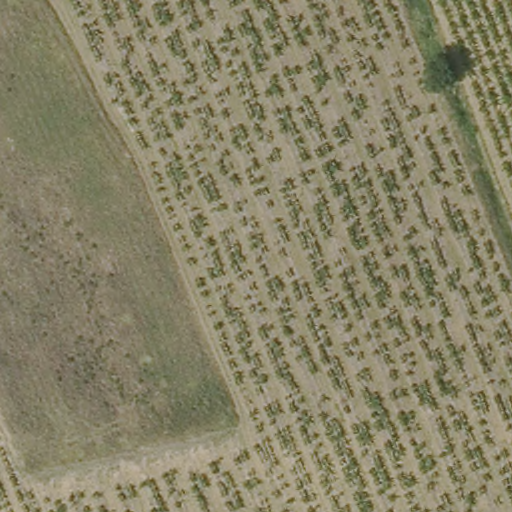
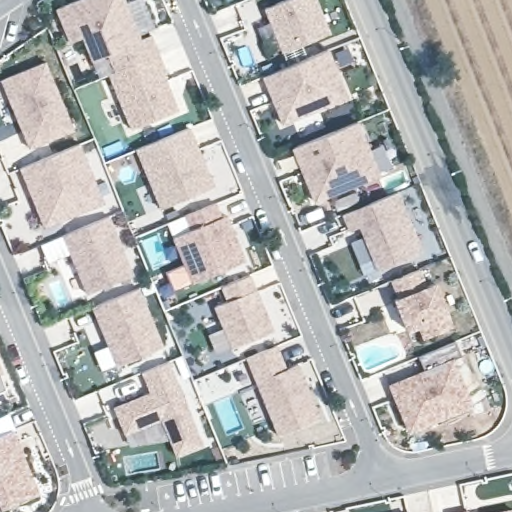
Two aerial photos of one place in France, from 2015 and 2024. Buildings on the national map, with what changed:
new [(125,0),(141,40),(153,35),(166,68),(163,69),(179,110),(131,129),(108,74),(99,77),(91,60),(81,37),(70,41),(56,10),(79,0),(125,0)]
new [(317,0),(330,31),(284,50),(266,6),(281,0),(317,0)]
new [(329,47),(349,95),(284,121),(274,98),(279,96),(276,87),(271,90),(264,74),(329,47)]
new [(3,101),(0,94),(0,81),(39,65),(68,132),(23,151),(16,132),(13,123),(17,121),(8,99),(3,101)]
new [(359,120),(381,173),(316,199),(303,169),(311,166),(309,160),(305,160),(298,144),(359,120)]
new [(203,162),(205,169),(213,190),(161,211),(136,152),(189,130),(203,162)]
new [(38,209),(29,189),(20,165),(35,159),(79,140),(103,198),(59,216),(43,222),(38,209)]
new [(397,191),(422,252),(376,272),(356,228),(349,231),(343,214),(397,191)]
new [(173,237),(191,231),(184,215),(217,204),(223,218),(227,215),(245,262),(191,285),(173,237)]
new [(63,234),(108,215),(133,273),(86,292),(73,298),(54,254),(68,248),(63,234)]
new [(419,270),(426,286),(434,283),(452,326),(423,338),(418,325),(407,330),(394,300),(398,298),(391,281),(419,270)]
new [(231,348),(215,306),(228,301),(221,288),(251,276),(274,331),(231,348)]
new [(138,287),(163,346),(116,365),(98,321),(92,306),(138,287)]
new [(424,371),(419,356),(456,341),(462,356),(453,360),(472,405),(409,430),(391,385),(424,371)]
new [(276,345),(286,368),(298,364),(319,418),(278,435),(271,417),(246,358),(276,345)]
new [(148,385),(142,371),(168,360),(201,442),(176,453),(161,417),(124,432),(114,406),(151,390),(148,385)]
new [(0,389),(0,369),(7,386),(0,389)]
new [(38,491),(0,507),(0,433),(12,428),(38,491)]
new [(512,508),(512,512),(495,512),(512,508)]
new [(467,510),(468,512),(459,512),(467,510)]

